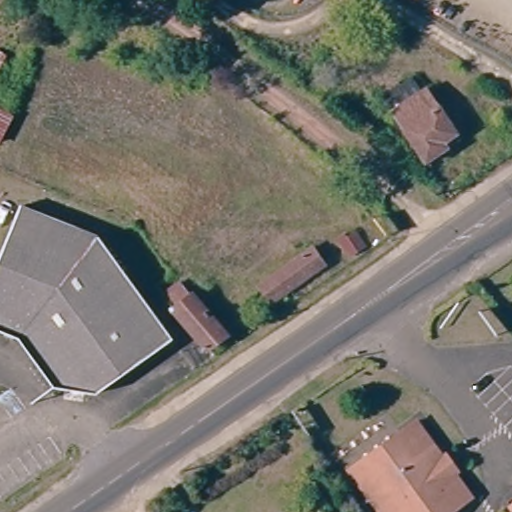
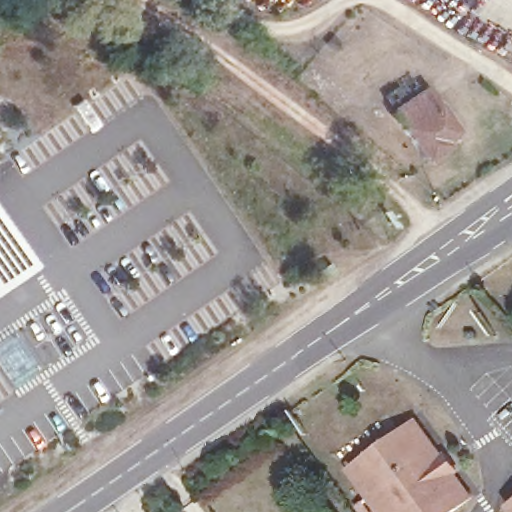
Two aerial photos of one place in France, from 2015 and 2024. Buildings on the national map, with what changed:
unchanged [(432,92),(462,134),(442,147),(447,154),(431,162),(397,115),(432,92)]
demolished [(9,117),(0,132),(0,111),(9,117)]
demolished [(16,202),(105,236),(170,335),(96,388),(51,379),(34,353),(37,342),(0,327),(0,245),(16,202)]
new [(35,268),(0,292),(0,219),(35,268)]
demolished [(190,297),(227,340),(209,352),(175,313),(174,311),(190,297)]
new [(15,339),(33,368),(12,382),(0,362),(0,348),(15,339)]
unchanged [(449,448),(461,464),(456,467),(473,491),(443,512),(389,512),(372,488),(352,462),(365,453),(417,415),(445,451),(449,448)]
unchanged [(364,512),(357,502),(365,497),(375,512),(364,512)]

